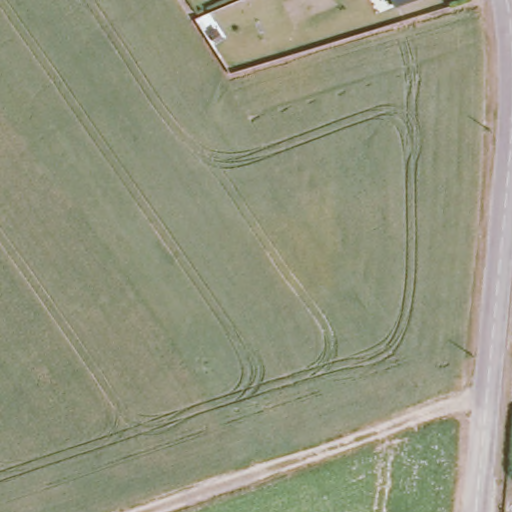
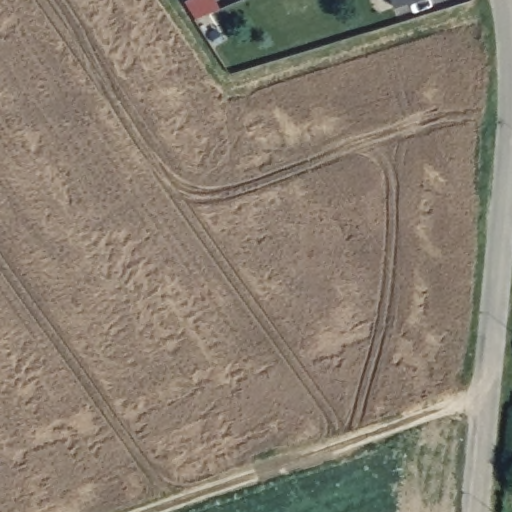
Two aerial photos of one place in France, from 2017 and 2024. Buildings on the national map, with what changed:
unchanged [(392,0),(410,0),(395,7),(392,0)]

